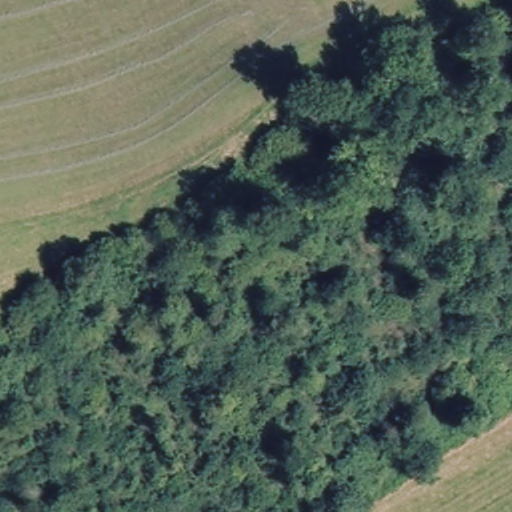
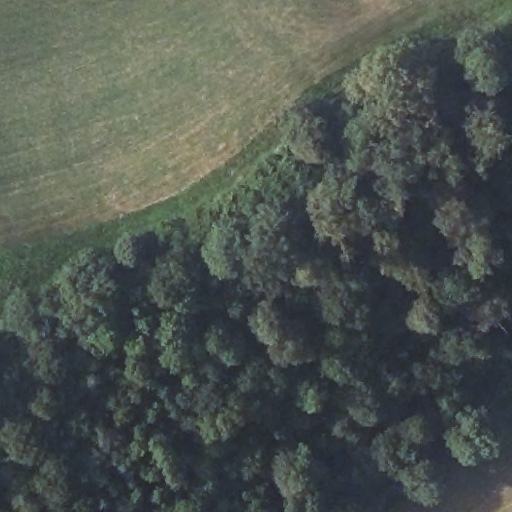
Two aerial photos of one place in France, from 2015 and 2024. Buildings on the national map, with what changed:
[]

